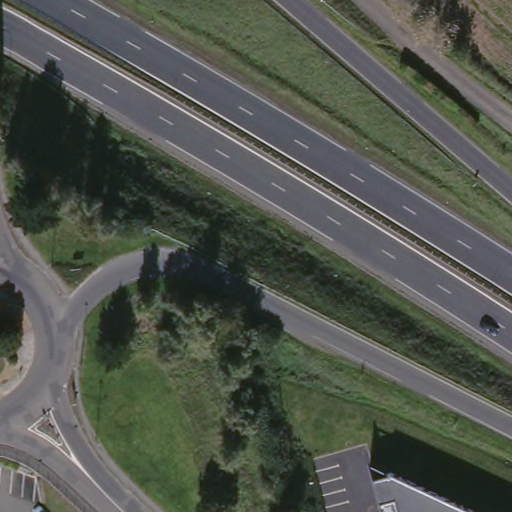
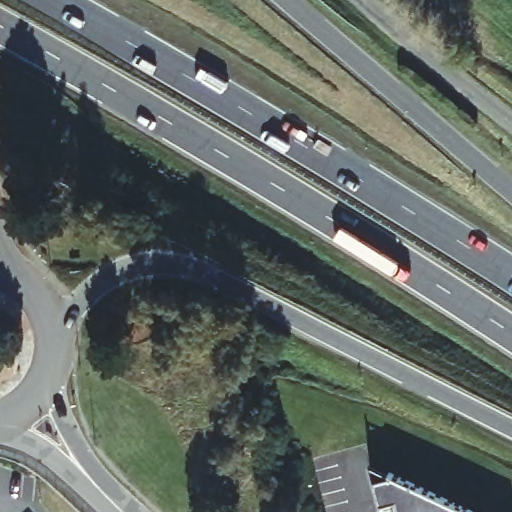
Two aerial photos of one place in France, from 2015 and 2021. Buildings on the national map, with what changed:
unchanged [(472,512),(383,512),(368,464),(472,512)]

